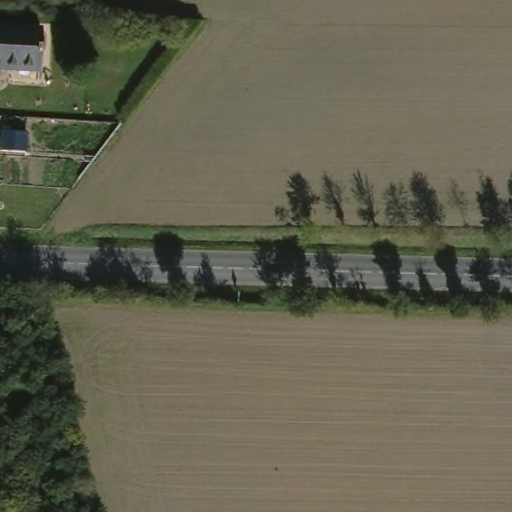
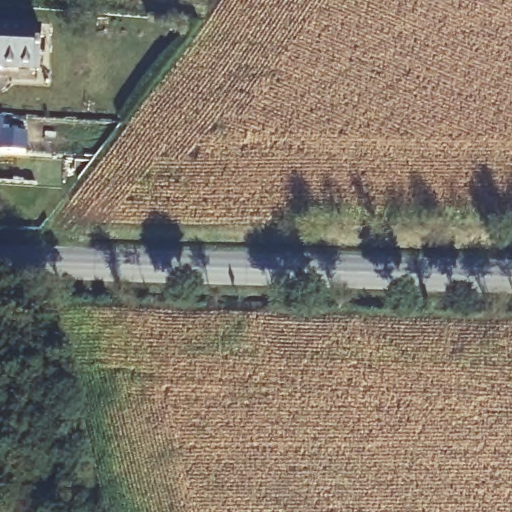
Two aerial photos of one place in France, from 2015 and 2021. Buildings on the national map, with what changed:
unchanged [(43,31),(40,74),(0,72),(0,28),(43,31)]
unchanged [(2,127),(28,128),(27,148),(2,148),(2,127)]

